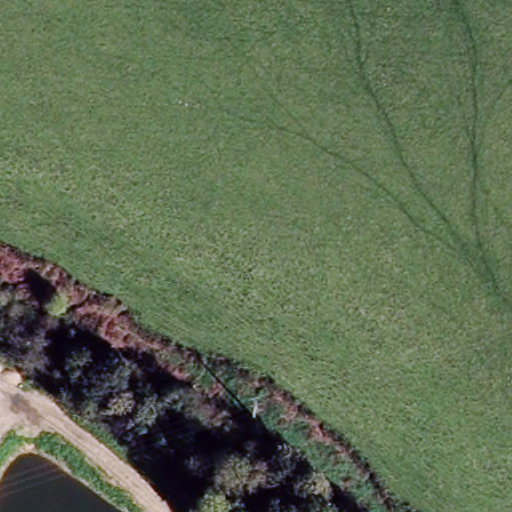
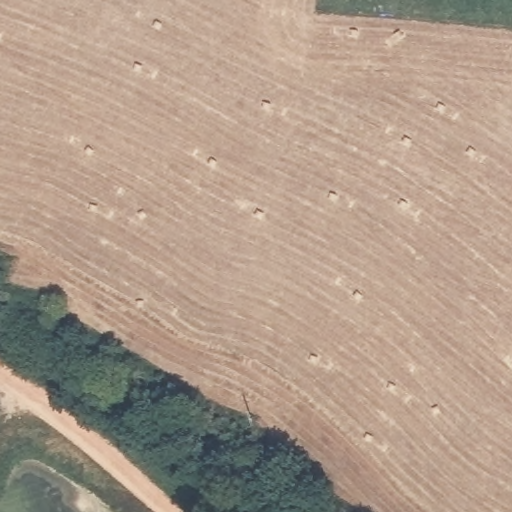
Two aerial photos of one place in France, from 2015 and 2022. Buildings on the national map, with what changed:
[]

